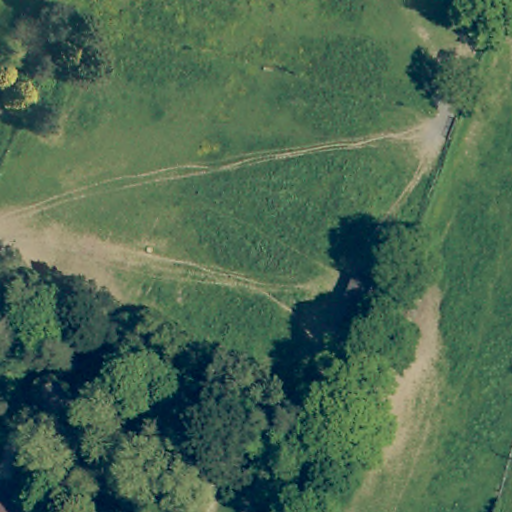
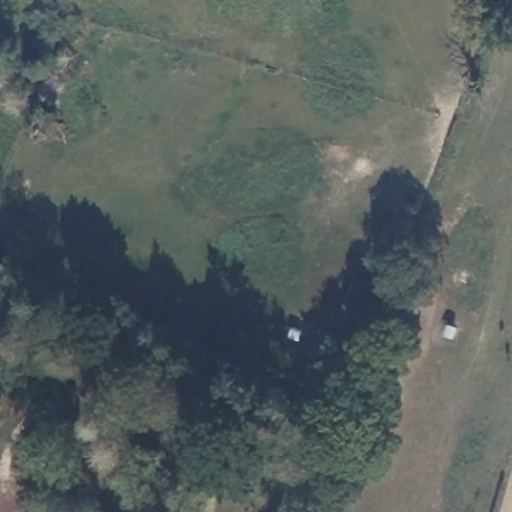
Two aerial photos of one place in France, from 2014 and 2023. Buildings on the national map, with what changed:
[]

